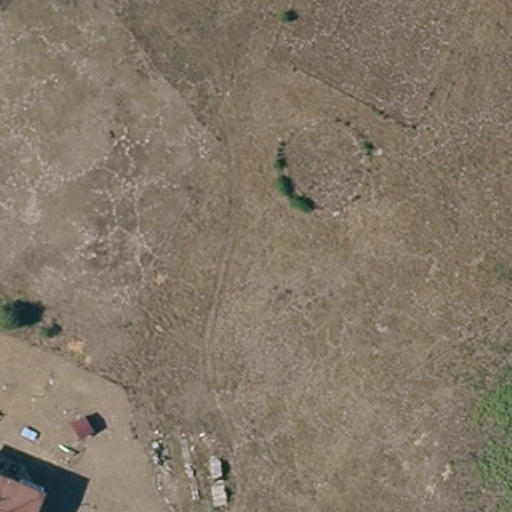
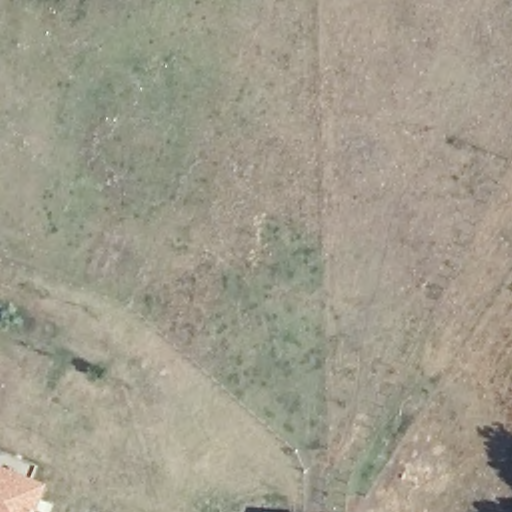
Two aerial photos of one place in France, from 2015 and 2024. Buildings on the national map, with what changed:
unchanged [(0,512),(0,481),(16,486),(20,475),(48,486),(39,509),(38,512),(0,512)]

